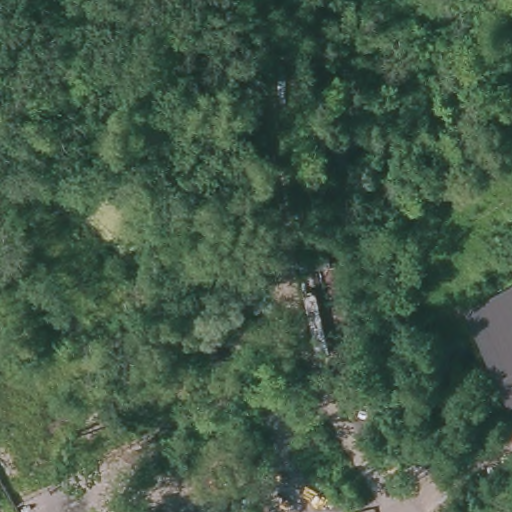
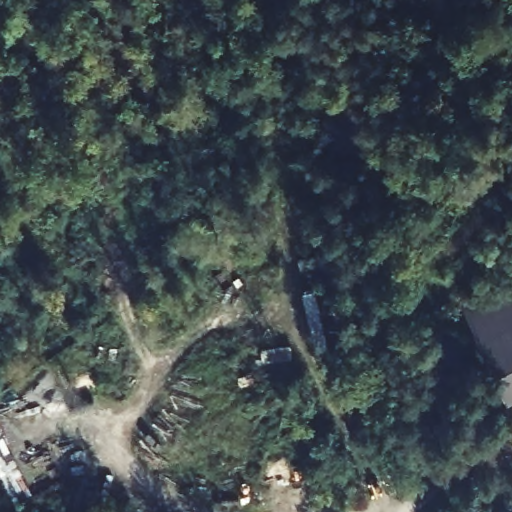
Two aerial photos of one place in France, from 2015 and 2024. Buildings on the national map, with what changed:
unchanged [(512,399),(507,402),(465,311),(512,288),(512,399)]

